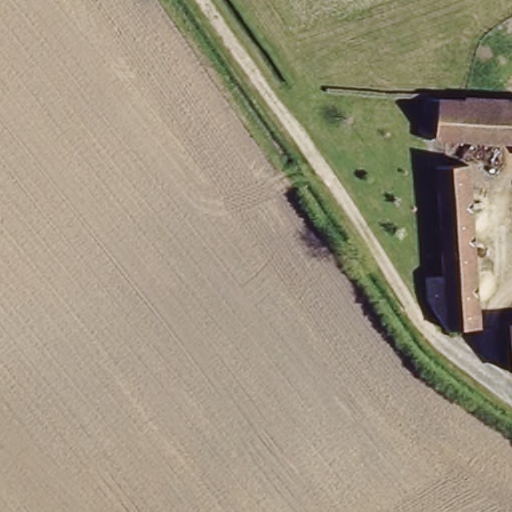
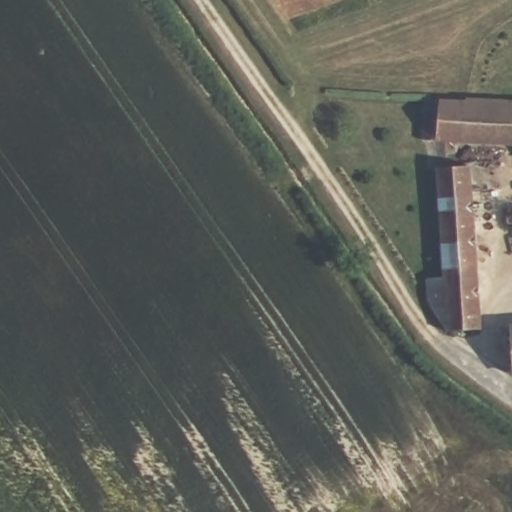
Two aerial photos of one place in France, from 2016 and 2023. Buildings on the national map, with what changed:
unchanged [(512,105),(512,130),(422,125),(427,100),(512,105)]
unchanged [(425,303),(422,278),(440,277),(437,166),(475,165),(480,326),(447,322),(425,303)]

